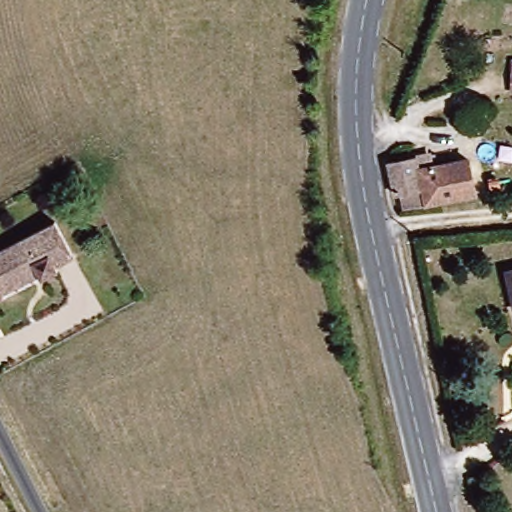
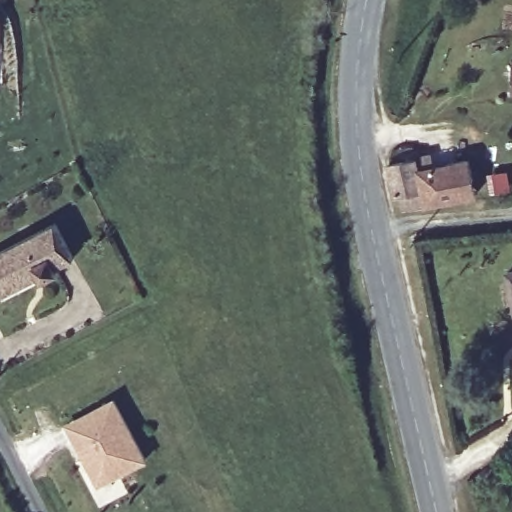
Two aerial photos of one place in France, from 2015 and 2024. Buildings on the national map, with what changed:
unchanged [(479,200),(405,212),(401,199),(393,200),(390,187),(390,176),(387,166),(421,162),(423,175),(473,168),(479,200)]
unchanged [(76,264),(54,274),(55,282),(35,289),(31,285),(0,304),(0,255),(55,226),(76,264)]
unchanged [(508,271),(512,270),(512,290),(508,271)]
new [(148,458),(98,485),(65,424),(114,398),(148,458)]

